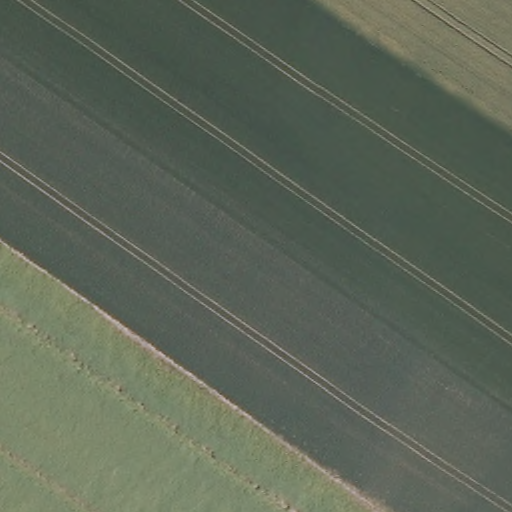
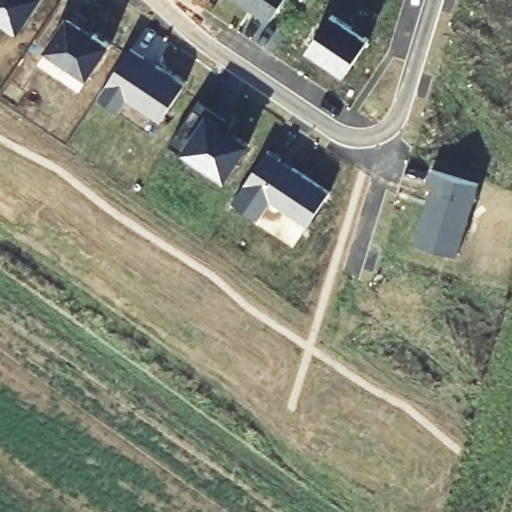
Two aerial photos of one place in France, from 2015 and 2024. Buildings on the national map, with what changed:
new [(3,19),(0,23),(0,0),(42,0),(22,31),(3,19)]
new [(241,0),(285,0),(272,21),(241,0)]
new [(113,43),(91,75),(48,47),(71,13),(113,43)]
new [(371,37),(346,74),(311,50),(336,13),(371,37)]
new [(186,81),(163,120),(130,97),(121,110),(100,94),(131,45),(186,81)]
new [(231,115),(227,120),(254,141),(229,178),(186,148),(172,140),(203,95),(231,115)]
new [(333,189),(311,223),(274,199),(261,218),(234,201),(270,147),(333,189)]
new [(459,254),(417,241),(434,187),(427,185),(432,167),(482,182),(459,254)]

